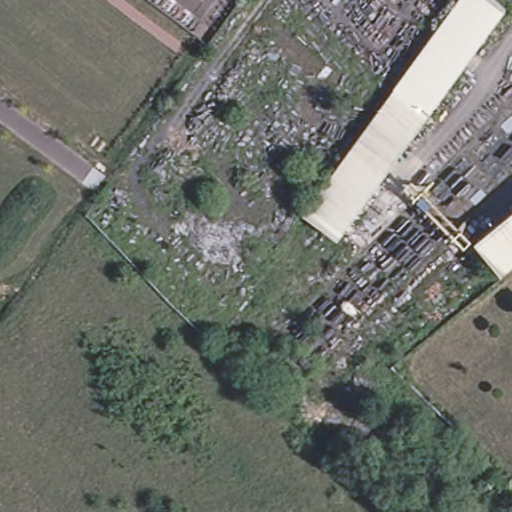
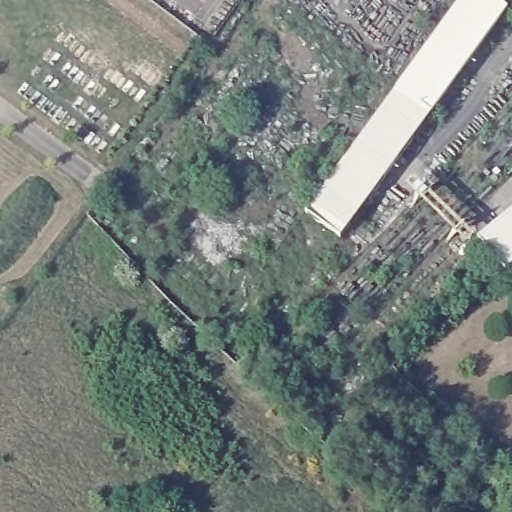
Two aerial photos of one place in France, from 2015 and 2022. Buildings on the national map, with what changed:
unchanged [(393,159),(376,182),(337,234),(303,209),(345,152),(362,130),(457,0),(493,0),(504,8),(393,159)]
unchanged [(505,273),(476,238),(512,209),(512,268),(509,270),(505,273)]
unchanged [(481,449),(473,441),(477,437),(485,446),(481,449)]

